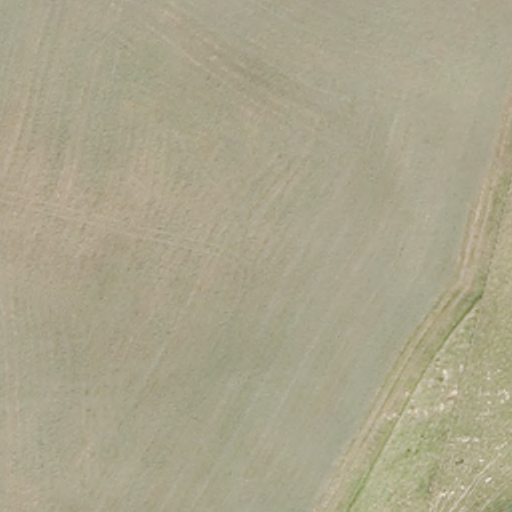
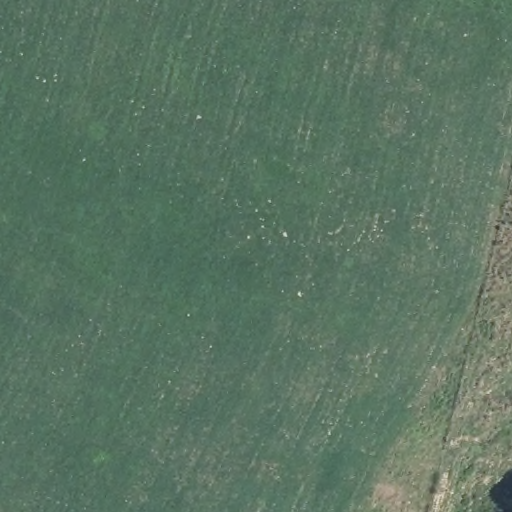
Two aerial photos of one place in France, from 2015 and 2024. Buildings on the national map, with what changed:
[]

